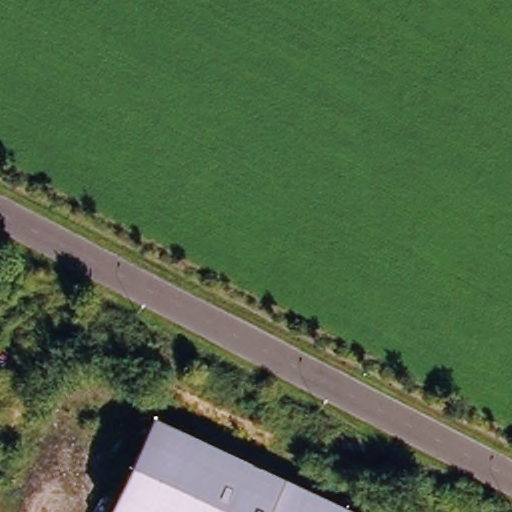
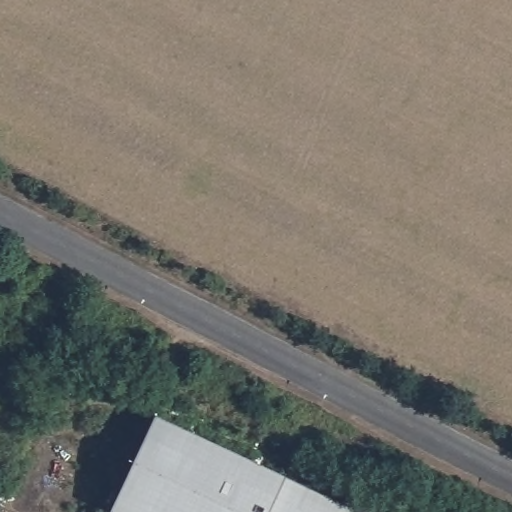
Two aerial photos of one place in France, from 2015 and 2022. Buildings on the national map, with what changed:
unchanged [(0,432),(0,415),(7,418),(0,432)]
unchanged [(351,512),(110,512),(151,421),(351,512)]

